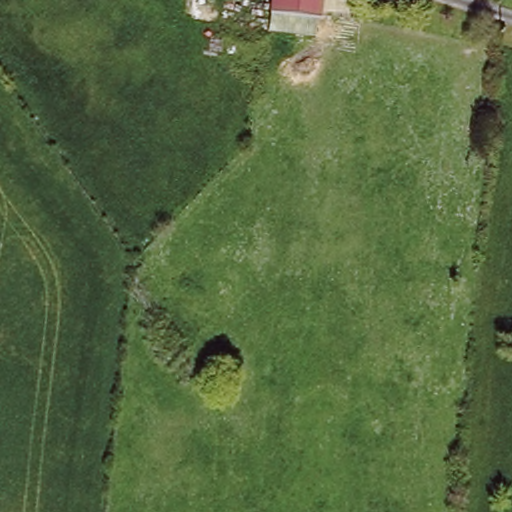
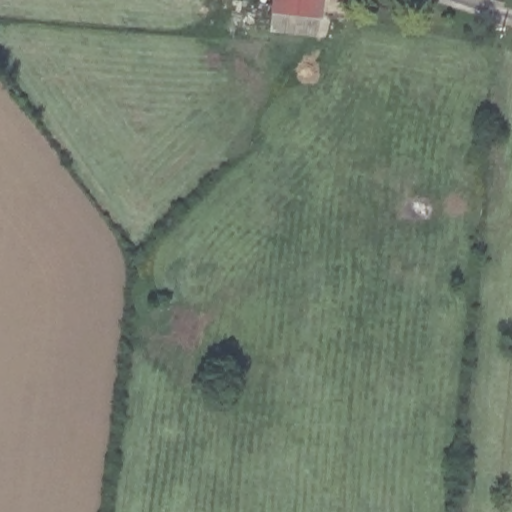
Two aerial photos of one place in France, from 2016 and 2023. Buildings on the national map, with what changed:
unchanged [(317,38),(268,32),(270,16),(251,14),(252,0),(321,0),(317,38)]

